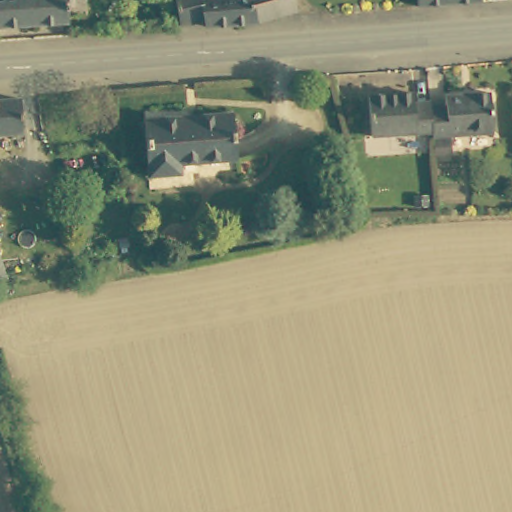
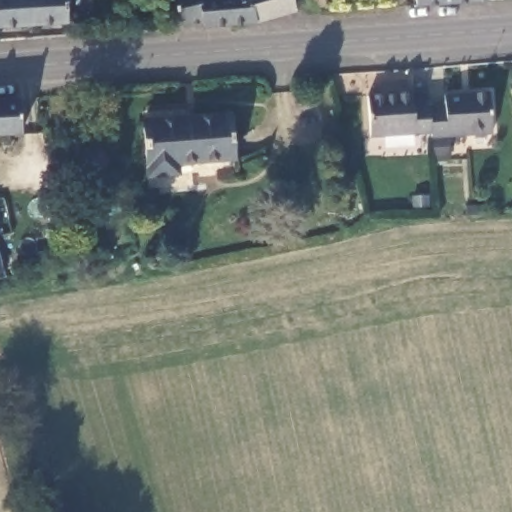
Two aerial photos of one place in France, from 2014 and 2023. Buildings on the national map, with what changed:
unchanged [(69,15),(58,15),(58,21),(0,25),(0,0),(69,0),(69,15)]
unchanged [(192,4),(205,0),(246,0),(248,24),(197,29),(196,25),(170,27),(165,0),(191,0),(192,4)]
unchanged [(288,13),(248,24),(246,0),(287,0),(288,13)]
unchanged [(483,5),(418,10),(418,2),(418,0),(483,0),(483,5)]
unchanged [(512,89),(512,96),(511,90),(512,89)]
unchanged [(408,92),(409,104),(424,102),(424,107),(426,131),(364,135),(363,95),(408,92)]
unchanged [(441,106),(440,96),(484,94),(487,134),(426,137),(426,131),(424,107),(441,106)]
unchanged [(14,100),(18,134),(0,136),(0,101),(14,100)]
unchanged [(183,116),(229,114),(231,159),(174,162),(174,172),(143,174),(140,119),(183,116)]
unchanged [(15,276),(0,278),(0,264),(13,262),(15,276)]

